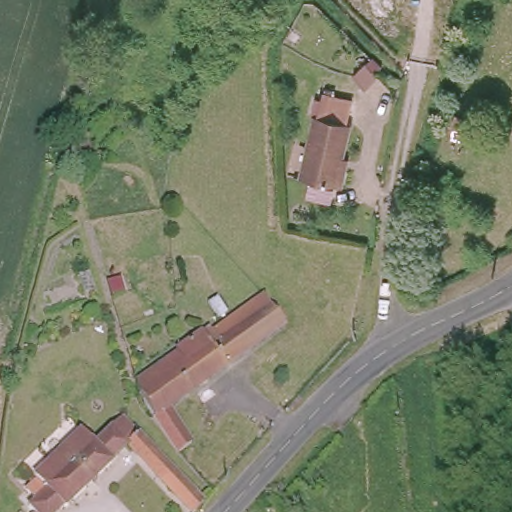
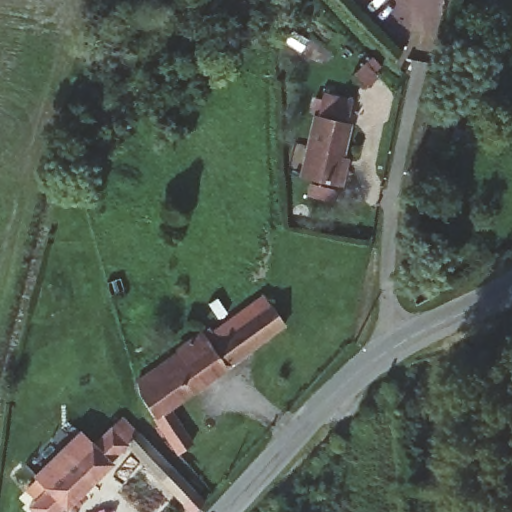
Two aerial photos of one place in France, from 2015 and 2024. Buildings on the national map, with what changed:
unchanged [(302,134),(318,88),(353,96),(355,122),(343,186),(295,176),(302,134)]
unchanged [(145,403),(138,395),(135,380),(157,366),(177,353),(175,350),(203,331),(206,336),(224,323),(267,293),(275,305),(287,323),(167,405),(192,443),(180,451),(155,413),(145,403)]
unchanged [(205,495),(194,507),(127,439),(109,455),(112,458),(66,501),(63,498),(49,512),(41,512),(29,500),(47,482),(36,470),(51,456),(62,446),(80,427),(92,440),(108,425),(122,412),(156,446),(177,468),(203,493),(205,495)]

